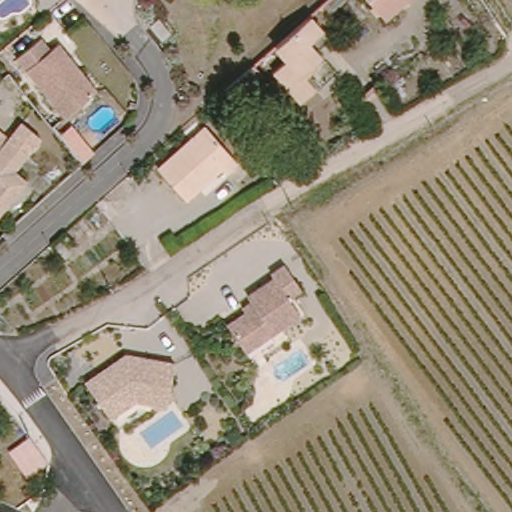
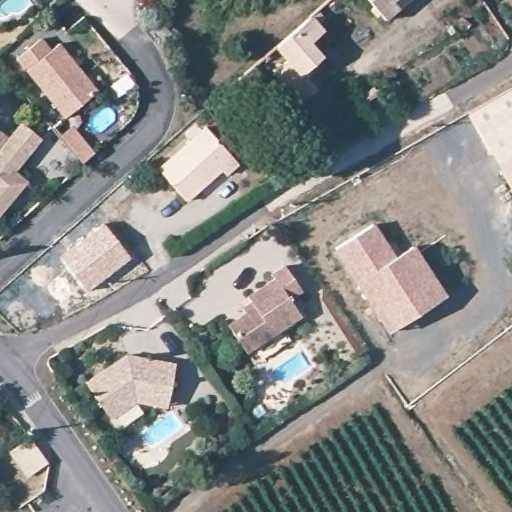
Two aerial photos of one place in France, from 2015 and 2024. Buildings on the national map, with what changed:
unchanged [(370,0),(409,0),(389,20),(370,0)]
unchanged [(308,67),(311,71),(305,79),(312,86),(299,101),(274,70),(286,60),(274,47),(310,14),(322,29),(330,36),(319,46),(323,52),(308,67)]
unchanged [(163,25),(176,39),(168,46),(155,31),(163,25)]
unchanged [(18,56),(43,34),(54,46),(63,39),(101,86),(68,116),(18,56)]
new [(512,115),(512,192),(479,134),(512,115)]
unchanged [(31,156),(8,138),(21,122),(43,140),(31,156)]
new [(60,136),(73,125),(98,152),(84,164),(60,136)]
unchanged [(221,181),(216,175),(178,206),(151,172),(204,129),(236,169),(221,181)]
unchanged [(17,176),(25,182),(0,218),(0,131),(31,156),(17,176)]
new [(103,222),(130,257),(86,291),(59,255),(103,222)]
new [(330,248),(370,223),(392,257),(410,245),(433,280),(375,317),(330,248)]
unchanged [(65,259),(53,270),(43,260),(55,249),(65,259)]
unchanged [(234,325),(261,306),(253,295),(279,276),(276,272),(289,263),(307,288),(299,295),(295,297),(306,315),(254,353),(234,325)]
new [(444,296),(386,333),(375,317),(433,280),(444,296)]
unchanged [(87,379),(128,350),(181,362),(171,406),(138,398),(114,417),(87,379)]
unchanged [(265,392),(276,409),(260,420),(248,404),(265,392)]
unchanged [(46,465),(27,477),(10,452),(29,440),(46,465)]

